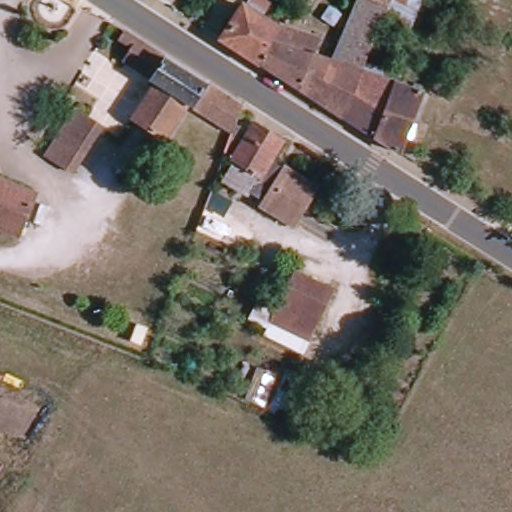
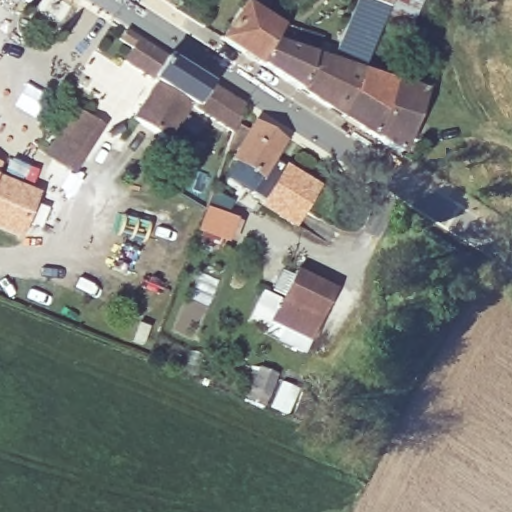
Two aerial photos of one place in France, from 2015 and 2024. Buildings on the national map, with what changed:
unchanged [(264,68),(280,28),(282,21),(285,23),(323,37),(318,53),(337,60),(364,0),(400,0),(371,70),(350,123),(264,68)]
unchanged [(264,68),(226,44),(245,10),(280,28),(264,68)]
unchanged [(195,104),(172,139),(139,118),(162,81),(132,62),(141,49),(132,43),(137,36),(212,84),(199,105),(195,104)]
unchanged [(405,83),(382,144),(350,123),(371,70),(405,83)]
unchanged [(428,90),(402,157),(382,144),(405,83),(428,90)]
unchanged [(212,84),(247,108),(237,130),(199,105),(212,84)]
unchanged [(74,169),(49,150),(72,119),(81,107),(106,126),(100,134),(74,169)]
unchanged [(289,170),(290,169),(321,188),(298,226),(270,208),(273,203),(257,192),(268,175),(265,172),(254,191),(231,177),(243,159),(240,156),(260,125),(290,144),(277,162),(289,170)]
unchanged [(19,235),(0,228),(0,179),(35,193),(19,235)]
new [(232,246),(196,232),(211,193),(234,202),(229,215),(242,220),(232,246)]
unchanged [(285,276),(324,294),(325,294),(310,326),(301,343),(262,325),(270,307),(285,276)]

